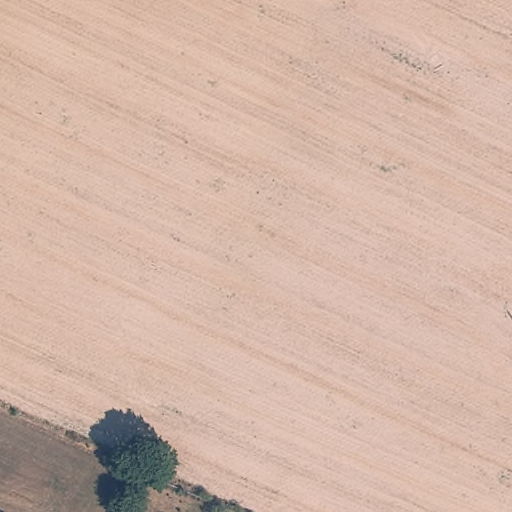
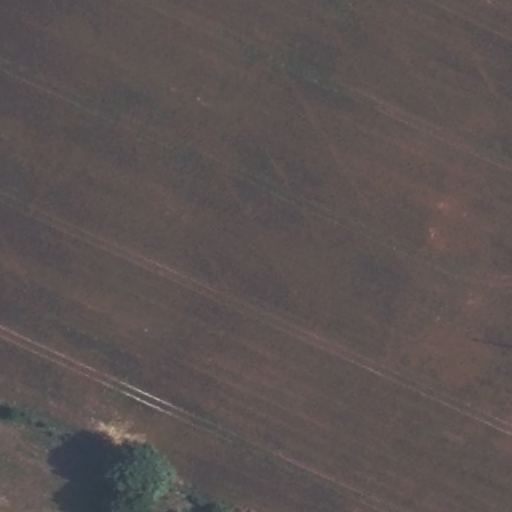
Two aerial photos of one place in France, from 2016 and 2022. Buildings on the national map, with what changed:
[]

